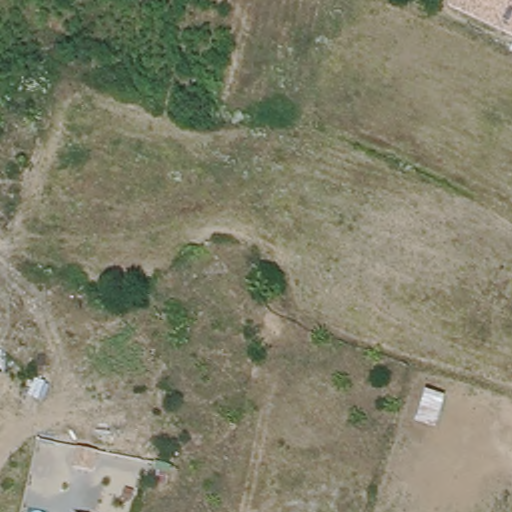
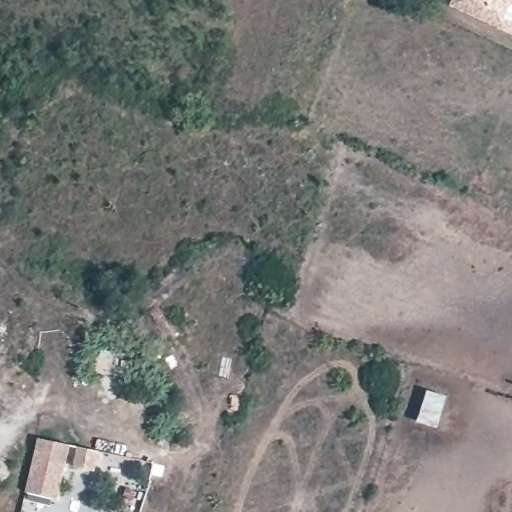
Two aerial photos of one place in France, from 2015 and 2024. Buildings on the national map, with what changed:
unchanged [(447,5),(449,0),(512,0),(512,35),(500,30),(447,5)]
new [(27,491),(39,439),(69,446),(58,498),(27,491)]
new [(100,451),(96,472),(74,467),(78,446),(100,451)]
demolished [(99,512),(79,512),(81,506),(99,512)]

